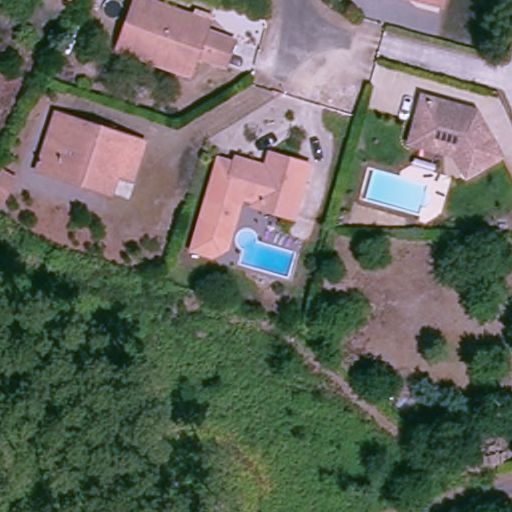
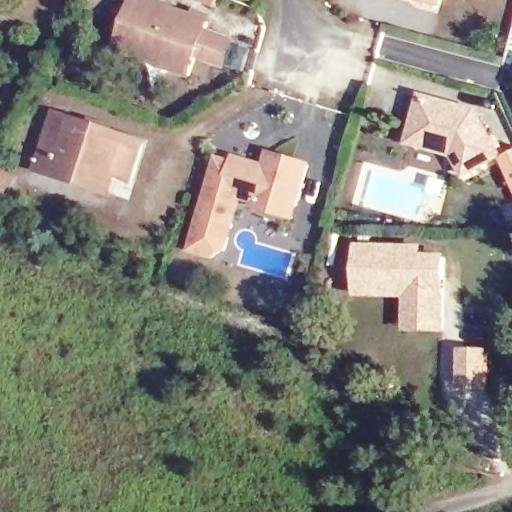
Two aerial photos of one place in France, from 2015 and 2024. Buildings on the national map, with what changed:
unchanged [(66,1),(65,0),(67,0),(66,1)]
unchanged [(229,67),(200,57),(193,76),(122,51),(141,0),(147,0),(213,23),(209,32),(237,42),(229,67)]
unchanged [(440,1),(435,0),(440,0),(440,1)]
unchanged [(426,88),(480,103),(505,147),(470,167),(453,136),(416,126),(426,88)]
unchanged [(134,170),(120,166),(118,171),(48,147),(61,106),(146,134),(134,170)]
unchanged [(220,230),(200,223),(214,176),(220,155),(230,158),(237,154),(272,164),(274,159),(290,164),(292,156),(310,161),(298,201),(268,193),(266,200),(232,190),(224,219),(220,230)]
unchanged [(0,174),(1,172),(15,180),(0,207),(0,174)]
new [(356,242),(424,245),(424,254),(449,255),(447,334),(403,333),(403,300),(353,297),(356,242)]
new [(458,349),(491,350),(488,391),(457,390),(458,349)]

